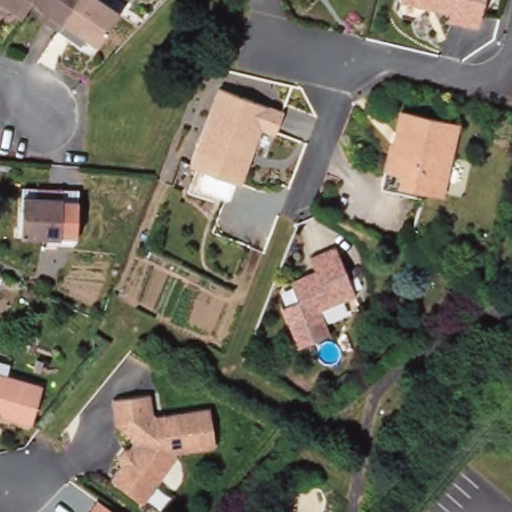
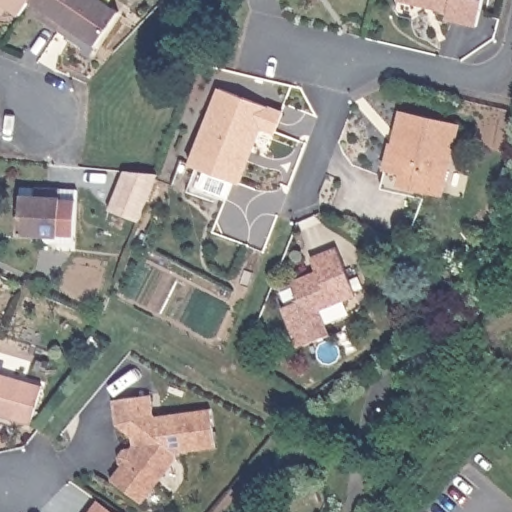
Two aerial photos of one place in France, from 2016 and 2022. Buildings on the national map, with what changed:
unchanged [(6,12),(0,8),(0,0),(35,0),(26,14),(11,4),(6,12)]
unchanged [(51,11),(36,0),(83,0),(64,29),(47,18),(51,11)]
unchanged [(107,0),(124,11),(101,44),(87,34),(81,41),(64,29),(83,0),(107,0)]
unchanged [(405,0),(424,0),(423,4),(405,0)]
unchanged [(448,17),(449,11),(436,8),(432,0),(483,0),(477,24),(448,17)]
unchanged [(239,187),(233,185),(226,204),(195,192),(202,173),(190,169),(220,91),(283,116),(276,136),(261,130),(253,151),(247,165),(239,187)]
unchanged [(386,174),(394,141),(397,129),(400,130),(405,108),(460,121),(443,192),(428,189),(425,196),(402,191),(384,186),(386,174)]
new [(123,172),(156,175),(139,219),(109,208),(123,172)]
unchanged [(23,196),(41,196),(42,188),(63,189),(61,236),(21,235),(23,196)]
unchanged [(321,307),(329,332),(297,344),(282,304),(297,299),(291,279),(310,272),(312,276),(317,271),(311,255),(336,245),(355,293),(321,307)]
unchanged [(36,425),(6,417),(9,412),(0,409),(0,373),(47,388),(36,425)]
unchanged [(123,456),(128,448),(136,445),(139,442),(136,434),(118,427),(115,402),(152,397),(155,417),(158,419),(212,412),(217,450),(177,455),(178,461),(143,504),(113,480),(124,466),(121,464),(123,456)]

